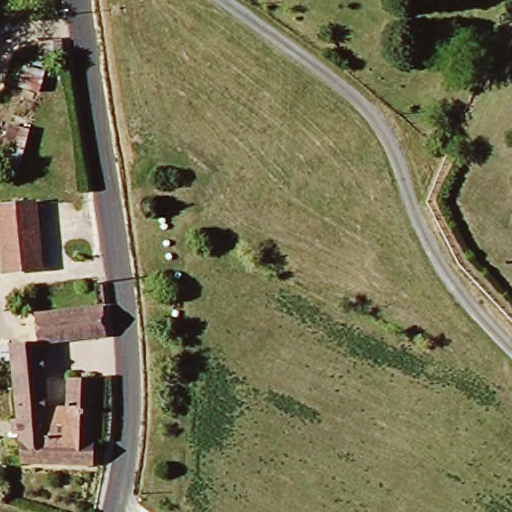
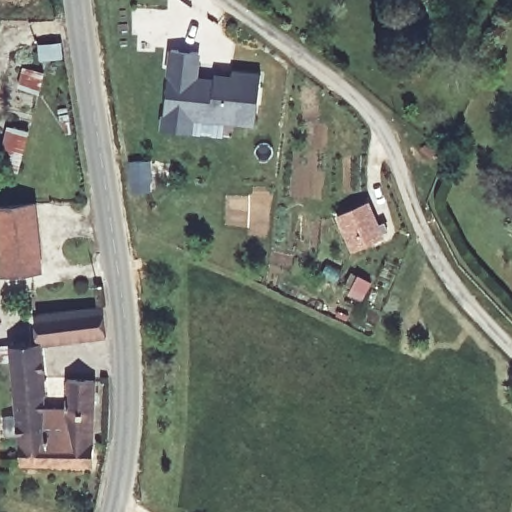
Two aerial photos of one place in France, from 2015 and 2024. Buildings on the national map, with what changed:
new [(201,53),(199,75),(214,77),(214,72),(235,74),(235,68),(264,72),(256,127),(195,120),(193,134),(162,130),(170,50),(201,53)]
unchanged [(14,63),(41,71),(15,169),(0,165),(0,115),(14,63)]
unchanged [(2,269),(0,241),(0,199),(32,198),(37,267),(2,269)]
new [(367,201),(382,237),(353,250),(337,215),(367,201)]
unchanged [(99,283),(101,304),(30,309),(30,291),(99,283)]
unchanged [(39,342),(34,342),(34,337),(30,309),(101,304),(104,336),(39,342)]
unchanged [(65,375),(92,375),(90,464),(20,463),(7,340),(34,337),(34,342),(39,342),(42,390),(36,390),(39,423),(63,425),(65,375)]

